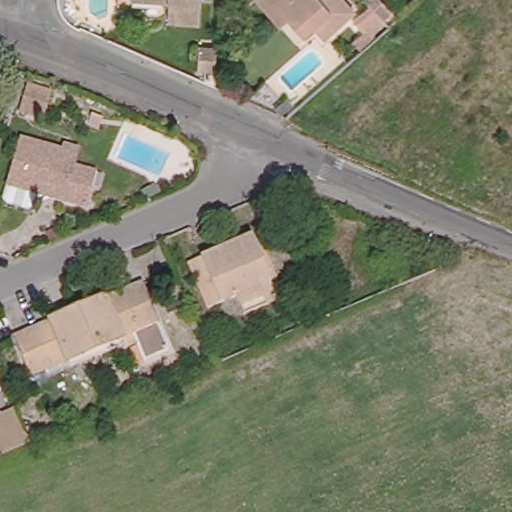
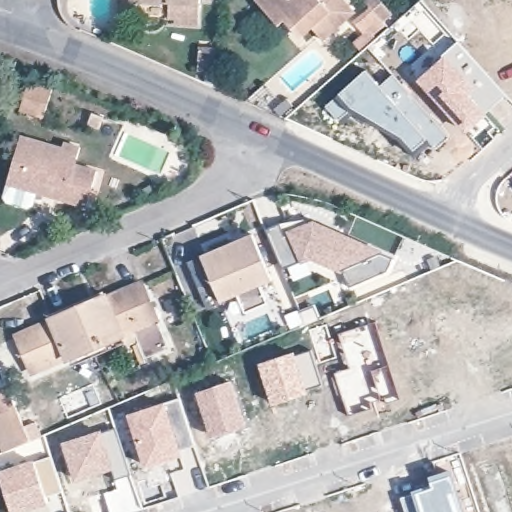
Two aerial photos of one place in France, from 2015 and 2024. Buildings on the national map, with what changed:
unchanged [(174,25),(174,20),(168,20),(169,2),(130,0),(200,0),(200,4),(199,27),(174,25)]
unchanged [(274,21),(255,0),(345,0),(351,6),(318,36),(308,24),(298,33),(281,14),(274,21)]
unchanged [(357,48),(348,38),(358,28),(348,17),(365,2),(384,24),(357,48)]
new [(458,40),(508,95),(466,133),(417,79),(458,40)]
new [(380,84),(392,74),(448,136),(436,149),(427,141),(415,152),(400,138),(351,108),(338,120),(325,106),(337,94),(366,69),(380,84)]
unchanged [(44,117),(20,110),(28,82),(53,89),(44,117)]
unchanged [(99,129),(87,125),(92,113),(104,117),(99,129)]
unchanged [(88,207),(8,184),(21,136),(63,148),(64,142),(81,147),(76,163),(98,169),(94,183),(88,207)]
unchanged [(278,255),(291,249),(286,237),(314,225),(392,258),(387,271),(349,287),(342,270),(313,258),(284,270),(278,255)]
unchanged [(278,276),(275,277),(283,294),(250,308),(242,289),(213,301),(194,256),(258,229),(278,276)]
unchanged [(175,348),(149,359),(137,332),(73,360),(72,358),(38,373),(22,335),(57,320),(56,319),(111,295),(112,296),(147,282),(175,348)]
demolished [(331,316),(301,328),(295,316),(325,303),(331,316)]
new [(348,368),(339,333),(366,324),(390,394),(348,413),(333,372),(348,368)]
new [(324,325),(335,355),(319,361),(309,331),(324,325)]
new [(294,352),(296,355),(310,350),(321,383),(307,388),(309,392),(272,406),(257,364),(294,352)]
new [(232,380),(247,426),(211,438),(195,392),(232,380)]
new [(178,398),(191,437),(180,440),(184,455),(145,468),(126,414),(168,401),(178,398)]
unchanged [(4,448),(0,440),(0,408),(15,401),(31,437),(4,448)]
new [(131,474),(128,475),(116,479),(113,469),(115,468),(103,433),(115,428),(131,474)]
new [(101,429),(115,468),(75,482),(61,442),(101,429)]
new [(35,461),(51,457),(63,491),(46,496),(49,504),(24,512),(11,512),(0,478),(0,471),(35,459),(35,461)]
new [(428,475),(450,468),(463,512),(404,512),(399,496),(412,491),(431,484),(428,475)]
new [(114,479),(128,475),(139,509),(131,512),(109,512),(103,493),(117,488),(114,479)]

